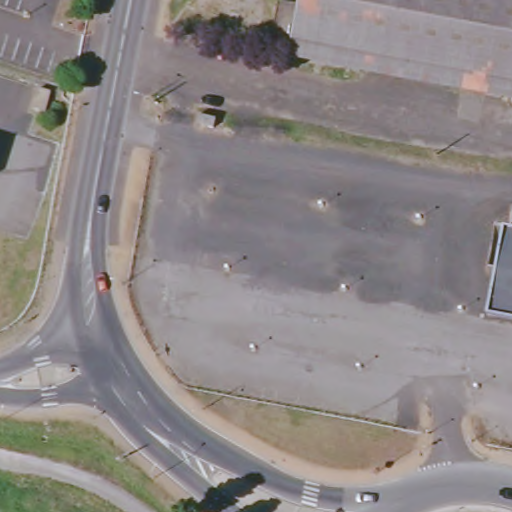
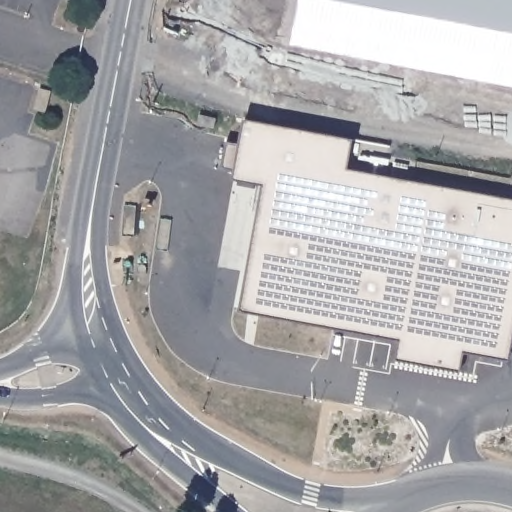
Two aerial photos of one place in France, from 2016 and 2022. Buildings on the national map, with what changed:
unchanged [(299,1),(299,0),(512,0),(512,84),(292,41),(270,37),(277,0),(296,0),(299,1)]
new [(327,173),(512,210),(512,244),(505,243),(479,369),(449,363),(445,385),(381,372),(385,350),(226,318),(253,183),(224,177),(225,172),(212,169),(217,142),(230,144),(235,122),(333,143),(327,173)]
unchanged [(41,149),(34,171),(20,167),(27,144),(41,149)]
demolished [(507,230),(512,231),(512,324),(490,320),(507,230)]
new [(479,369),(505,243),(512,244),(512,282),(493,376),(448,367),(449,363),(479,369)]

